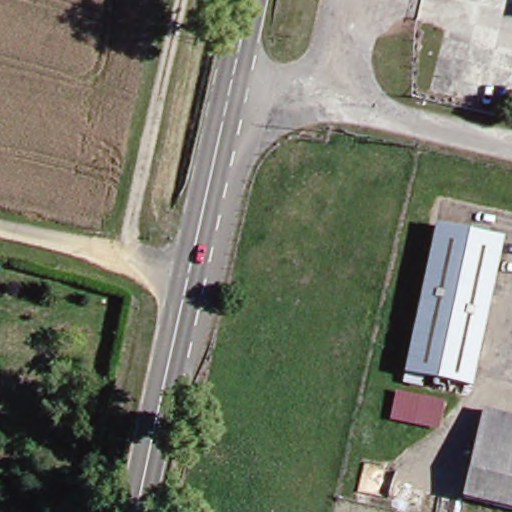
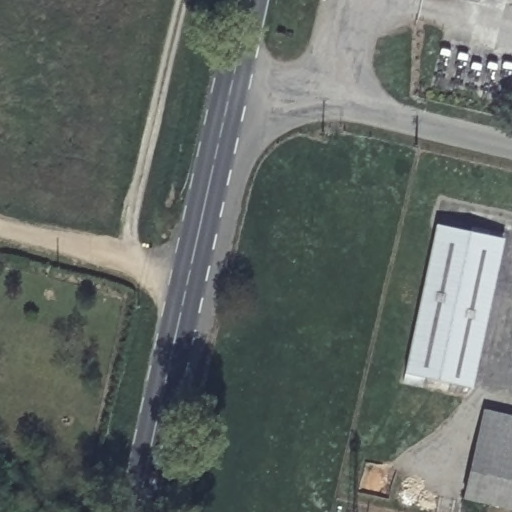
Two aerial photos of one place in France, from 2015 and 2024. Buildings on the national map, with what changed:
unchanged [(329,126),(326,142),(307,145),(307,132),(329,126)]
unchanged [(404,377),(433,228),(502,242),(469,391),(404,377)]
unchanged [(389,421),(394,389),(445,401),(438,431),(389,421)]
unchanged [(473,442),(481,408),(512,415),(512,451),(473,442)]
unchanged [(461,497),(473,442),(512,451),(512,508),(461,497)]

